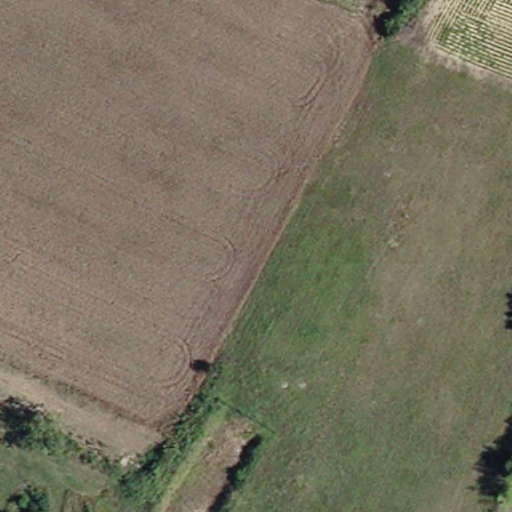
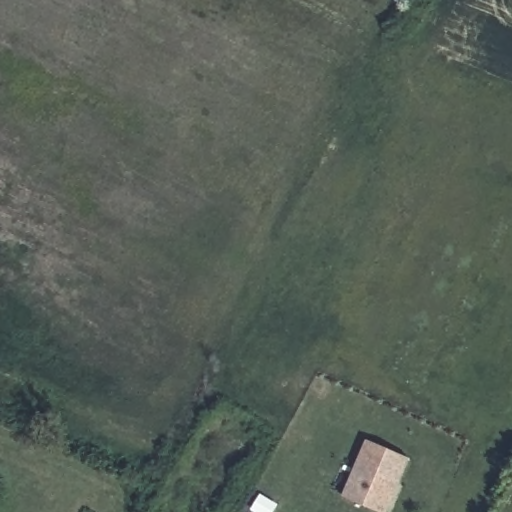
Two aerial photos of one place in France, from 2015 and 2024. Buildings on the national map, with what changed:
new [(382,512),(343,496),(367,440),(408,457),(397,482),(392,494),(383,512),(382,512)]

